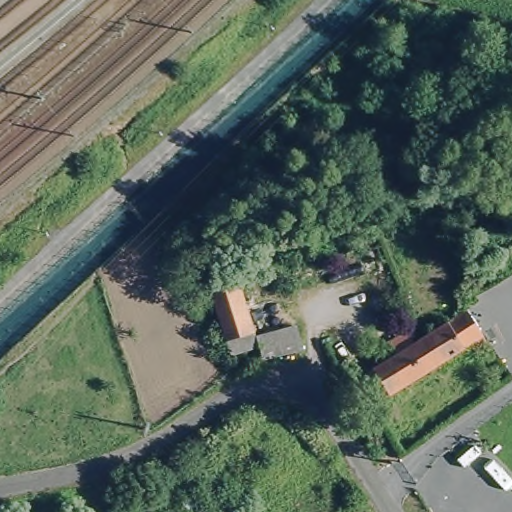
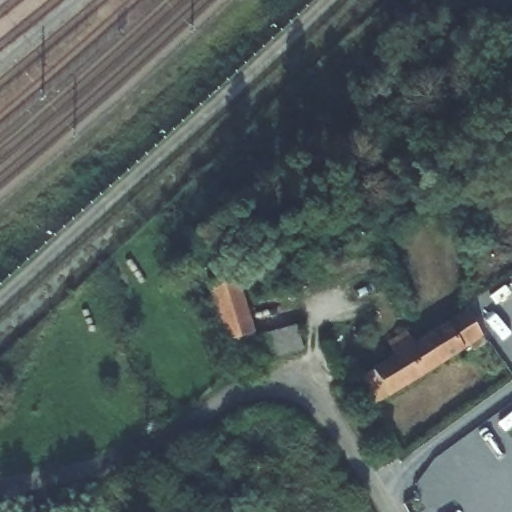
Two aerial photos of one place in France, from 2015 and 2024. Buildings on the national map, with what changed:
unchanged [(226,355),(203,282),(231,274),(251,338),(292,326),(298,350),(257,360),(253,346),(226,355)]
unchanged [(395,355),(388,343),(406,331),(414,343),(466,311),(482,336),(375,405),(358,378),(395,355)]

